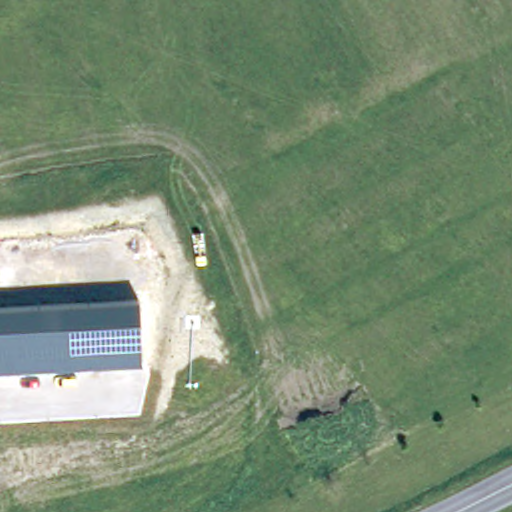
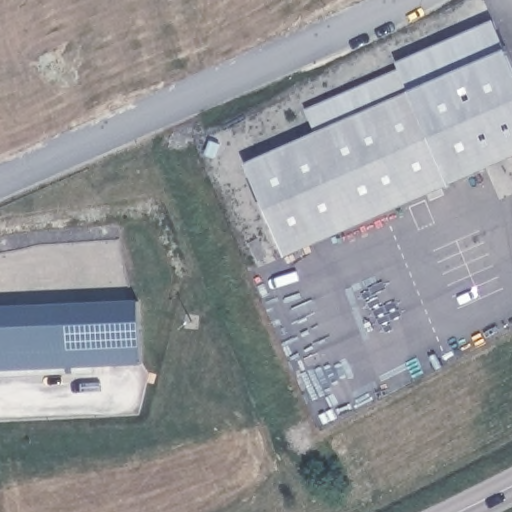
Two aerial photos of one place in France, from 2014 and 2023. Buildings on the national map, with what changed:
new [(397,62),(492,21),(505,50),(512,65),(512,156),(450,183),(287,254),(247,163),(315,132),(305,109),(400,68),(397,62)]
unchanged [(141,361),(0,365),(0,302),(138,298),(141,361)]

